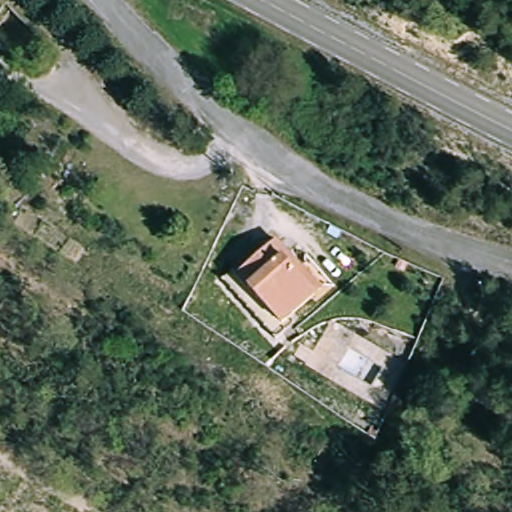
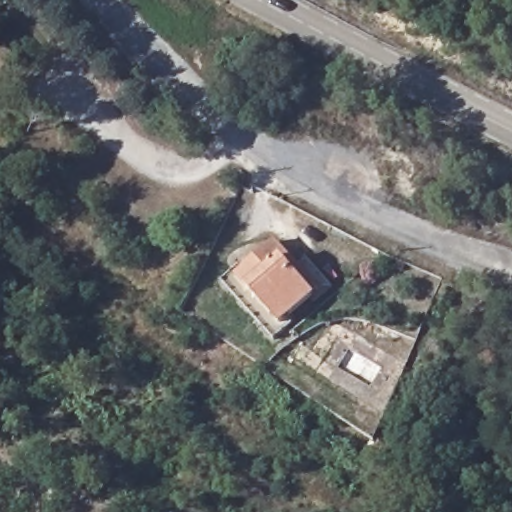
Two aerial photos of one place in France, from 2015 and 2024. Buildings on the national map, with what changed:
unchanged [(281,242),(303,268),(297,273),(316,296),(283,326),(241,273),(281,242)]

